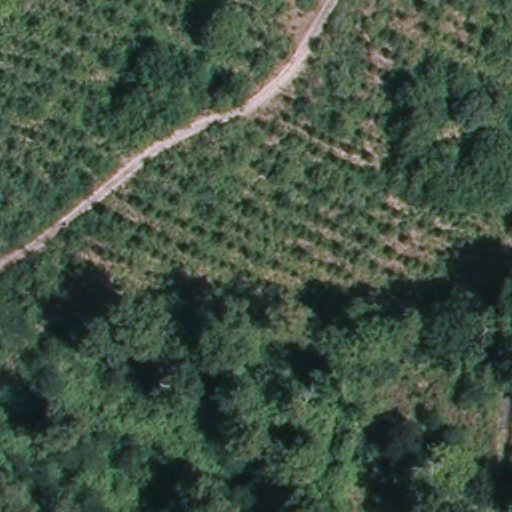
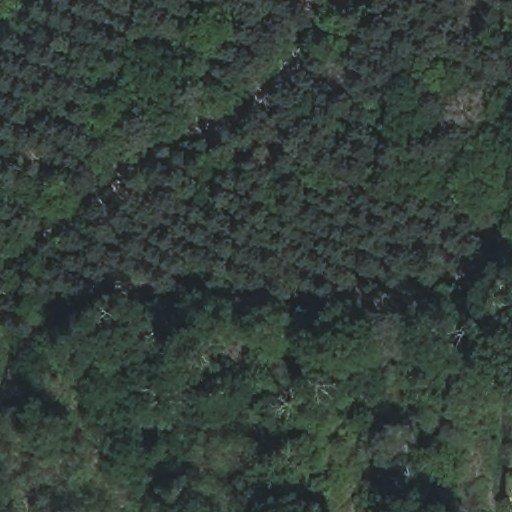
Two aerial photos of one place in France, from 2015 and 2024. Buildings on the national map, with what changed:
[]

